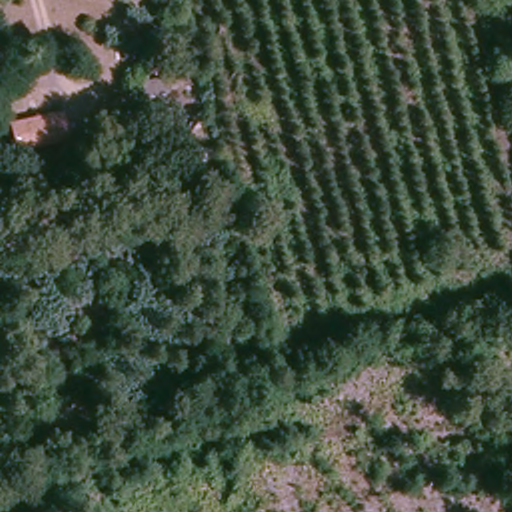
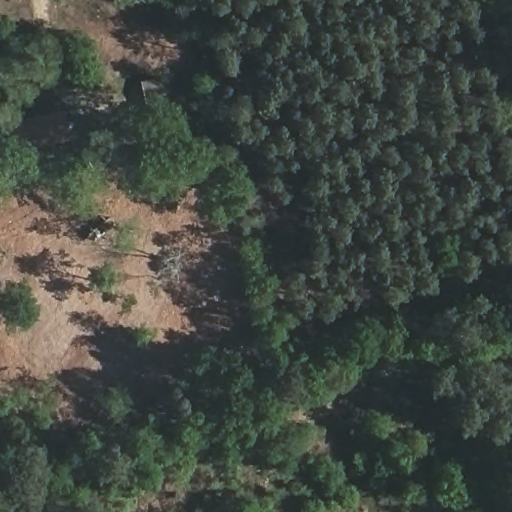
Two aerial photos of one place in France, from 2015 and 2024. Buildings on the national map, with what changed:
unchanged [(154,66),(175,62),(185,90),(164,97),(154,66)]
unchanged [(10,123),(57,117),(66,116),(69,141),(59,144),(15,151),(10,123)]
unchanged [(220,127),(235,127),(242,165),(229,166),(220,127)]

